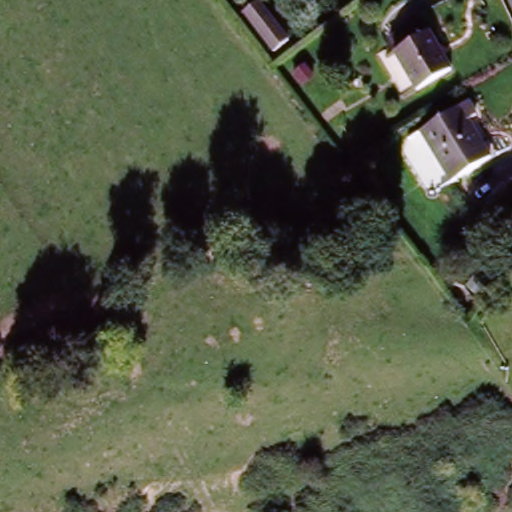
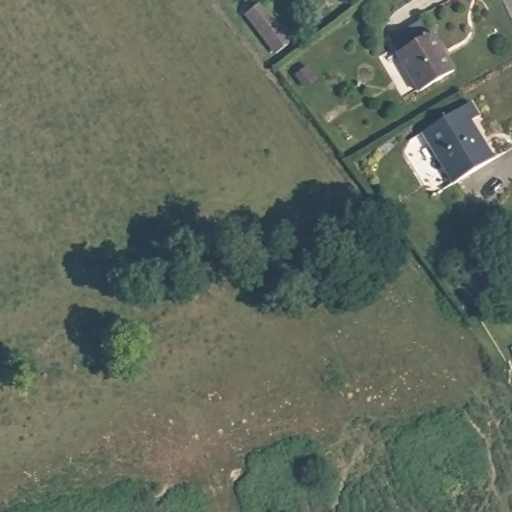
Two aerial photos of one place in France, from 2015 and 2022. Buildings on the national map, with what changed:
unchanged [(260,2),(290,44),(275,55),(245,12),(260,2)]
unchanged [(402,58),(394,45),(422,26),(432,40),(454,77),(422,97),(399,60),(402,58)]
unchanged [(470,105),(478,119),(467,126),(492,163),(454,189),(422,135),(470,105)]

